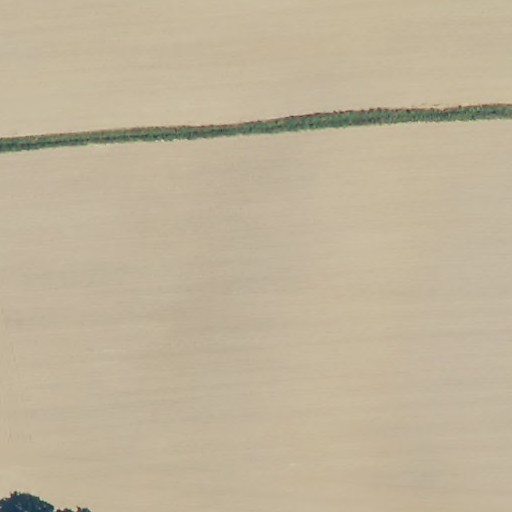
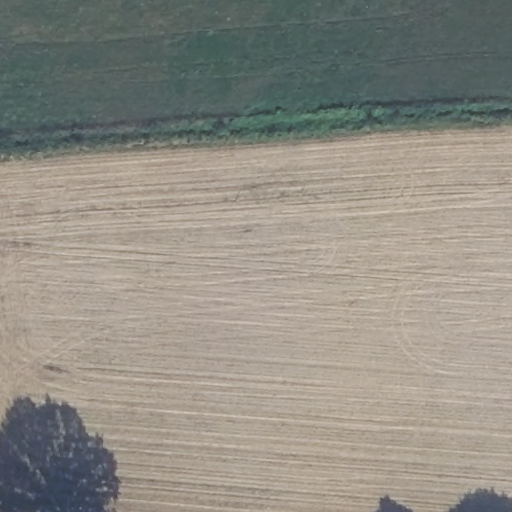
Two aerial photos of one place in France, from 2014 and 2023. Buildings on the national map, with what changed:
[]

